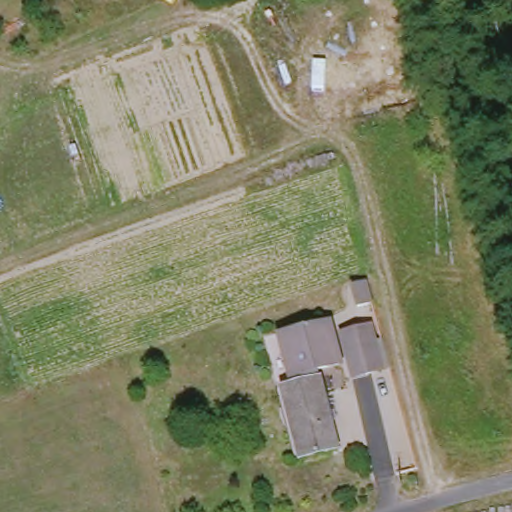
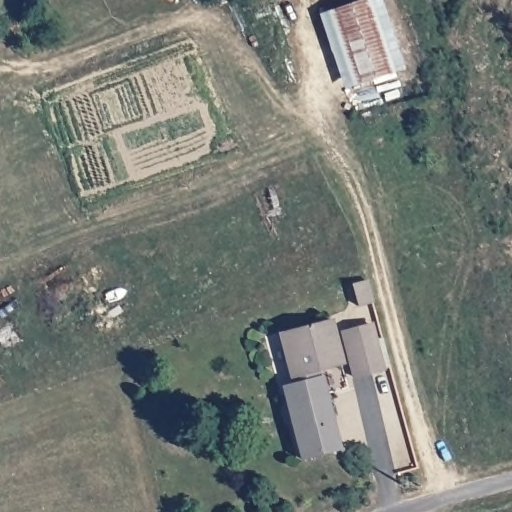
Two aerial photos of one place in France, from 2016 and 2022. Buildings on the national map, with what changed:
new [(363,0),(381,0),(403,69),(343,87),(318,15),(363,0)]
unchanged [(350,289),(365,283),(370,305),(356,310),(350,289)]
unchanged [(282,335),(332,320),(345,363),(320,370),(343,449),(307,459),(286,390),(297,387),(282,335)]
unchanged [(355,377),(341,334),(360,328),(370,325),(383,368),(371,371),(355,377)]

